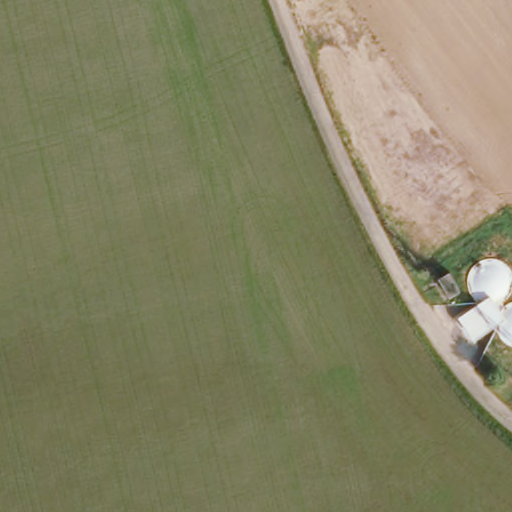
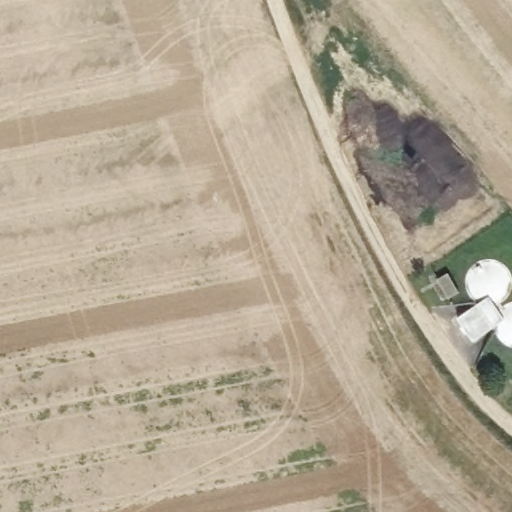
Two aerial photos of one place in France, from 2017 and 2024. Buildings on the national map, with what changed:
unchanged [(438,282),(450,273),(465,291),(452,301),(438,282)]

